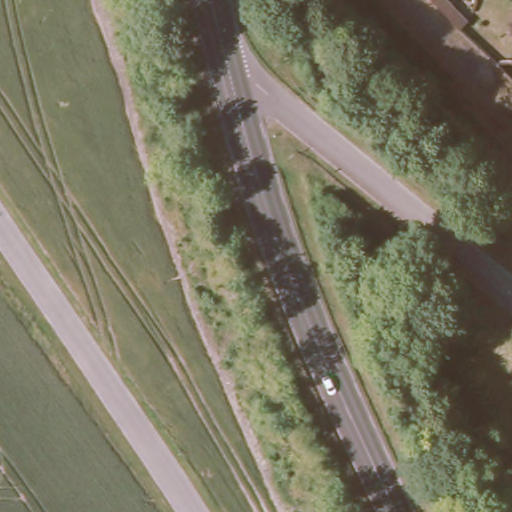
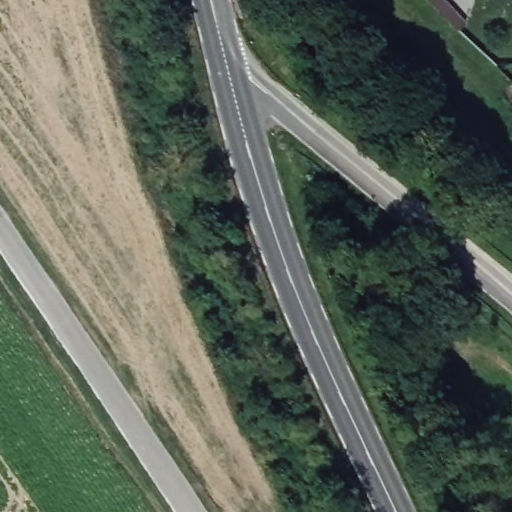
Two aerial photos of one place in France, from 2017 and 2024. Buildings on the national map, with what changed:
unchanged [(446,0),(467,22),(458,29),(429,0),(446,0)]

